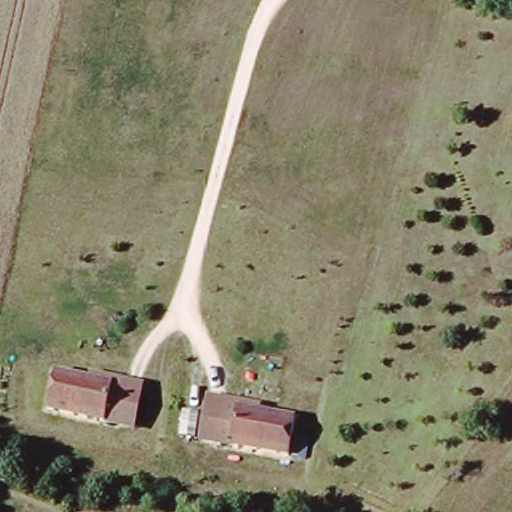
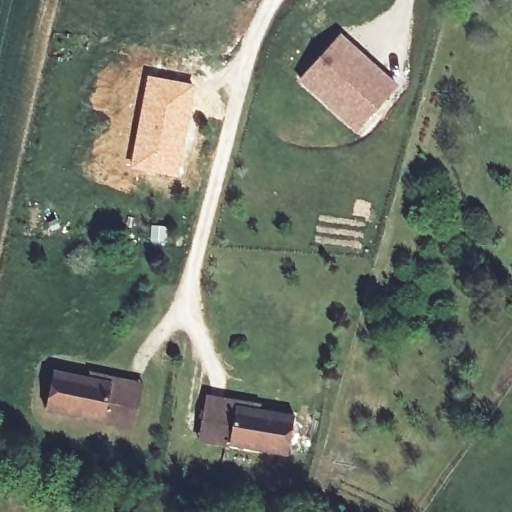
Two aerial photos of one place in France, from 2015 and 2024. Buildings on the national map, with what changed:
new [(397,85),(356,133),(298,81),(340,35),(397,85)]
new [(147,74),(196,84),(179,177),(129,166),(147,74)]
unchanged [(86,379),(87,370),(142,384),(133,432),(44,414),(54,373),(86,379)]
unchanged [(260,407),(260,409),(292,415),(287,459),(196,446),(204,398),(260,407)]

